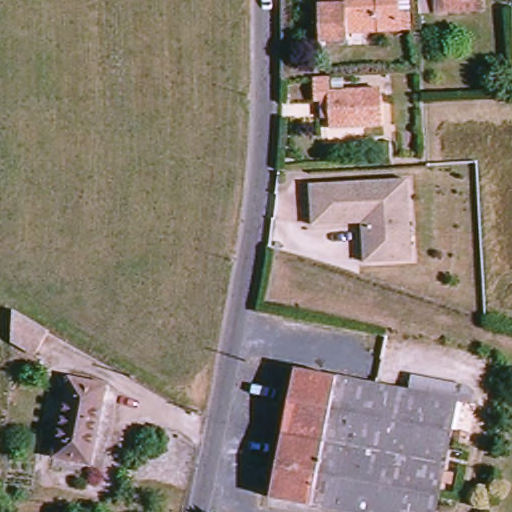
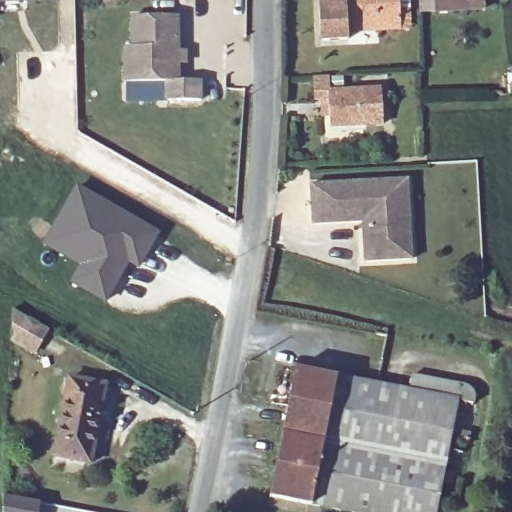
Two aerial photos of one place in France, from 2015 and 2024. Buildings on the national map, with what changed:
new [(57,1),(0,2),(0,0),(57,0),(57,1)]
unchanged [(401,32),(346,34),(347,43),(321,45),(319,6),(329,5),(329,0),(408,0),(411,31),(401,32)]
unchanged [(486,10),(438,14),(437,0),(485,0),(486,10)]
new [(181,16),(182,49),(189,49),(189,65),(182,66),(181,80),(202,80),(202,100),(163,102),(162,81),(122,82),(122,47),(131,47),(130,16),(181,16)]
unchanged [(328,81),(329,96),(378,94),(380,129),(329,132),(326,96),(312,96),(311,81),(328,81)]
unchanged [(414,260),(367,262),(364,222),(315,225),(312,185),(410,180),(412,221),(413,246),(414,260)]
new [(78,187),(146,225),(160,232),(142,265),(131,260),(108,301),(75,282),(84,265),(47,245),(55,229),(78,187)]
unchanged [(12,310),(47,328),(35,352),(11,339),(12,310)]
unchanged [(431,512),(355,512),(269,494),(295,368),(453,401),(431,512)]
unchanged [(90,465),(57,458),(72,380),(105,387),(90,465)]

